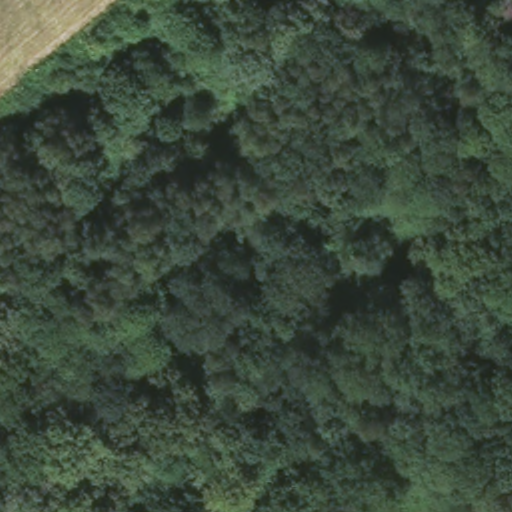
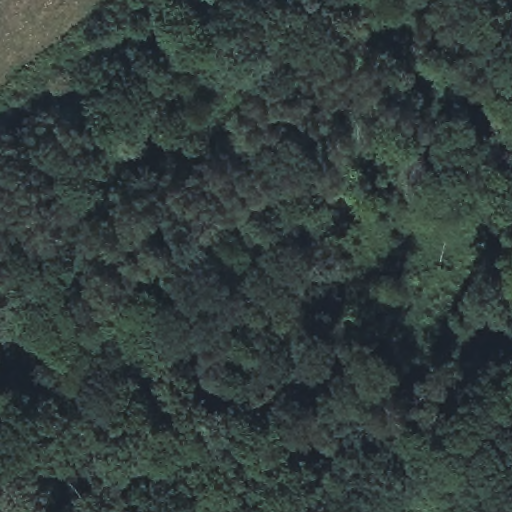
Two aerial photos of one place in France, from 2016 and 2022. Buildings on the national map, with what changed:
[]

